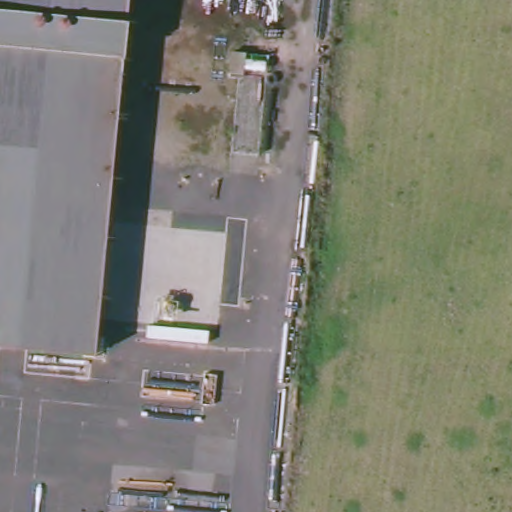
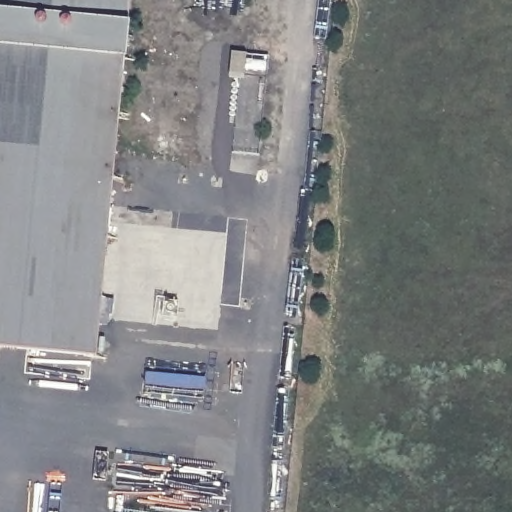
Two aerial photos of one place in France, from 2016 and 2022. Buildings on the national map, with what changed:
unchanged [(100,354),(0,345),(0,0),(131,0),(100,354)]

